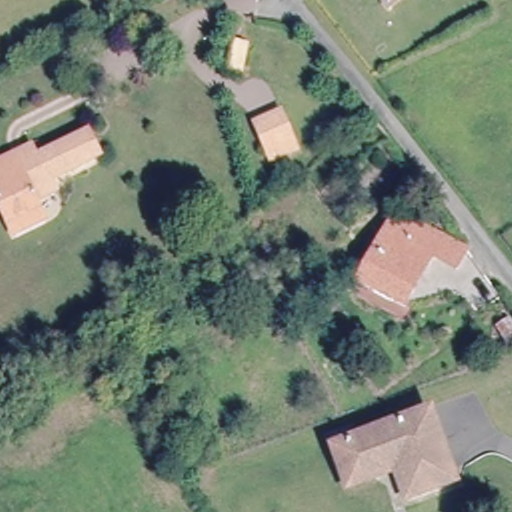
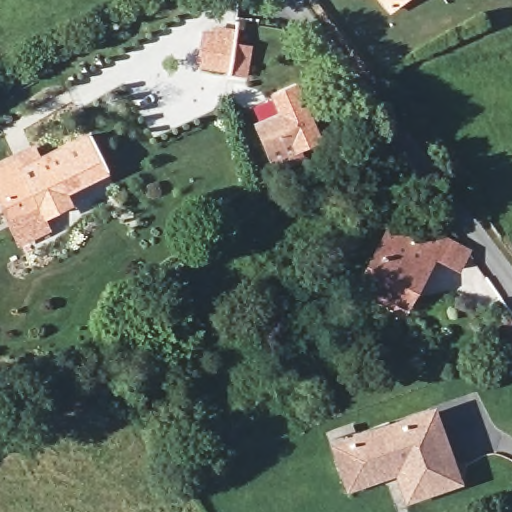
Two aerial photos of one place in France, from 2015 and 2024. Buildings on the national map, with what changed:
unchanged [(387,0),(397,0),(390,5),(387,0)]
new [(201,29),(213,30),(214,26),(237,29),(235,42),(252,45),(246,78),(196,69),(201,29)]
unchanged [(282,111),(296,147),(273,157),(258,121),(282,111)]
unchanged [(28,195),(37,213),(7,227),(0,212),(0,156),(7,152),(25,144),(28,150),(30,155),(80,131),(91,151),(41,177),(46,185),(28,195)]
unchanged [(395,216),(464,255),(454,273),(430,259),(403,309),(357,285),(395,216)]
unchanged [(500,328),(511,322),(512,324),(512,350),(511,351),(498,330),(500,328)]
unchanged [(428,408),(453,478),(403,496),(392,468),(344,485),(329,443),(428,408)]

